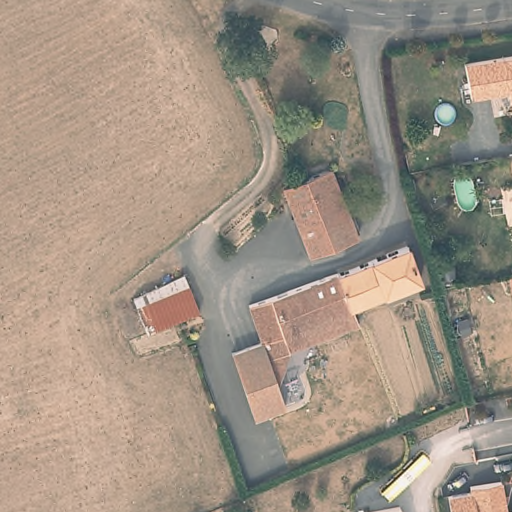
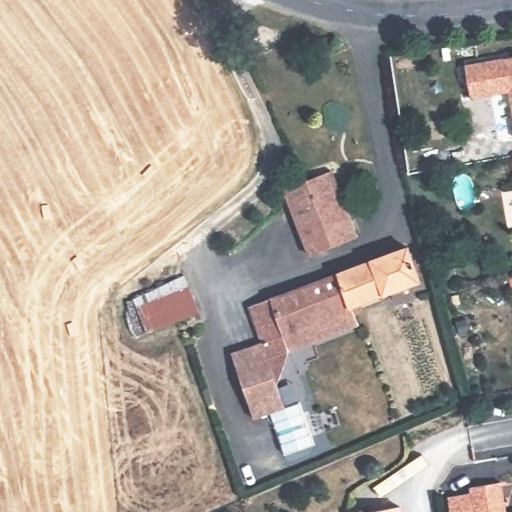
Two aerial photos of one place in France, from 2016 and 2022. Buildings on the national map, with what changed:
unchanged [(512,59),(512,107),(509,94),(465,102),(458,69),(512,59)]
unchanged [(509,156),(512,156),(512,170),(509,156)]
unchanged [(306,254),(281,189),(286,184),(303,179),(332,169),(356,234),(306,254)]
unchanged [(358,301),(365,319),(357,321),(335,269),(410,244),(422,280),(418,281),(358,301)]
unchanged [(248,300),(335,269),(357,321),(295,343),(279,377),(287,401),(257,412),(233,347),(262,337),(249,304),(248,300)]
unchanged [(206,292),(199,310),(146,328),(137,332),(132,318),(139,314),(130,294),(183,271),(206,292)]
unchanged [(467,497),(466,491),(498,485),(505,512),(447,512),(445,502),(467,497)]
unchanged [(400,507),(402,512),(376,512),(400,507)]

